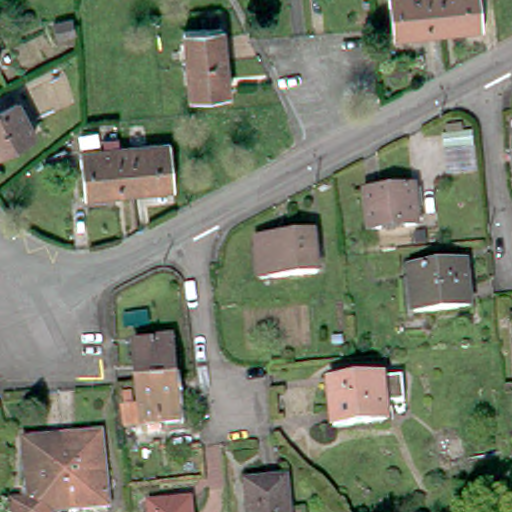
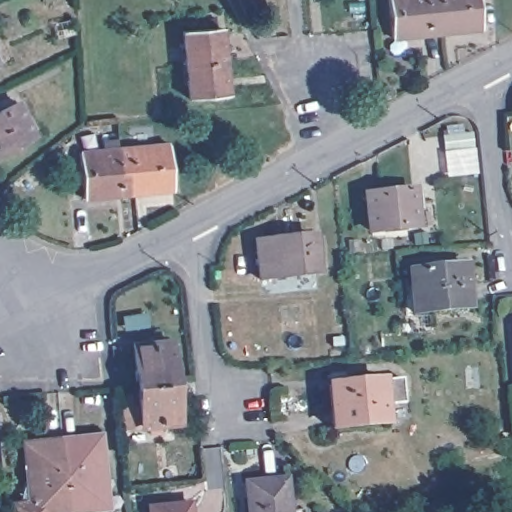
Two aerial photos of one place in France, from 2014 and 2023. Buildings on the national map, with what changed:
unchanged [(437,32),(393,37),(389,0),(433,0),(437,32)]
unchanged [(482,27),(437,32),(433,0),(479,0),(482,27)]
unchanged [(56,41),(56,32),(56,21),(74,20),(74,32),(75,41),(56,41)]
unchanged [(185,32),(222,29),(225,61),(187,65),(185,32)]
unchanged [(225,61),(227,94),(190,98),(187,65),(225,61)]
unchanged [(17,101),(35,133),(0,152),(0,110),(17,101)]
unchanged [(78,152),(102,150),(101,139),(117,137),(117,148),(120,148),(124,179),(125,191),(81,196),(78,152)]
unchanged [(124,179),(120,148),(165,142),(169,187),(125,191),(124,179)]
unchanged [(370,234),(367,197),(414,193),(414,195),(422,195),(424,212),(416,214),(417,229),(370,234)]
unchanged [(257,236),(312,230),(316,268),(260,273),(257,236)]
unchanged [(410,269),(465,262),(471,306),(414,311),(410,269)]
unchanged [(162,375),(137,377),(133,337),(170,333),(174,374),(162,375)]
unchanged [(179,415),(142,418),(137,377),(162,375),(174,374),(179,415)]
unchanged [(382,377),(387,421),(334,427),(329,383),(382,377)]
unchanged [(69,495),(63,436),(100,433),(107,504),(70,508),(69,495)]
unchanged [(55,512),(15,512),(14,501),(30,500),(24,440),(63,436),(69,495),(70,508),(55,509),(55,512)]
unchanged [(288,512),(249,512),(247,482),(285,478),(288,512)]
unchanged [(179,501),(190,500),(190,512),(151,512),(150,504),(179,501)]

